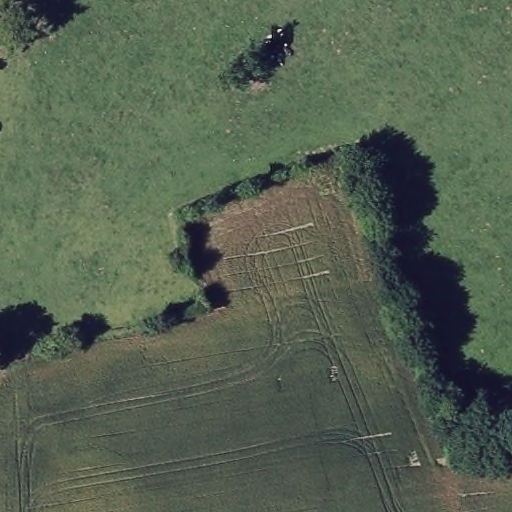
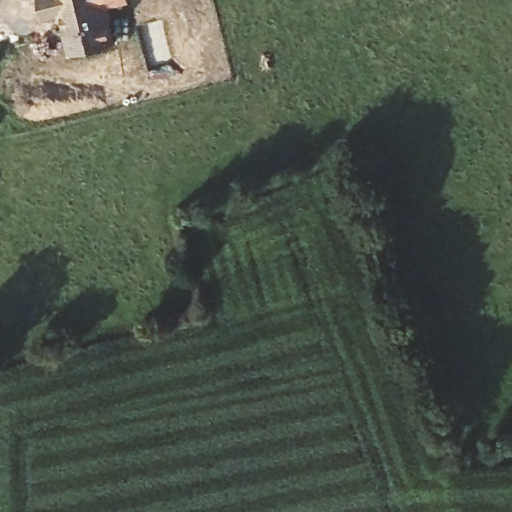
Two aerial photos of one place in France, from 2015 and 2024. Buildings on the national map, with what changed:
new [(43,19),(39,0),(129,0),(129,1),(110,6),(117,44),(69,54),(60,14),(43,19)]

